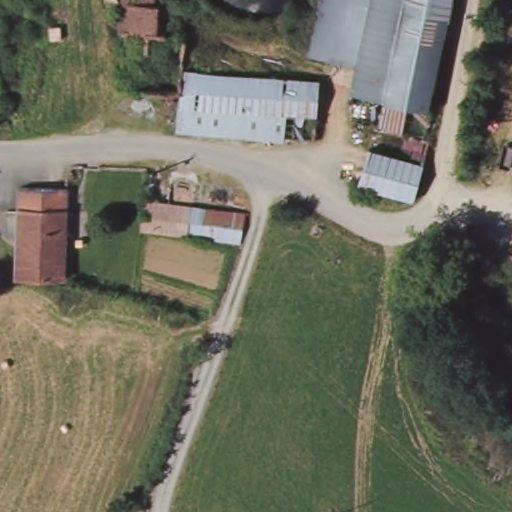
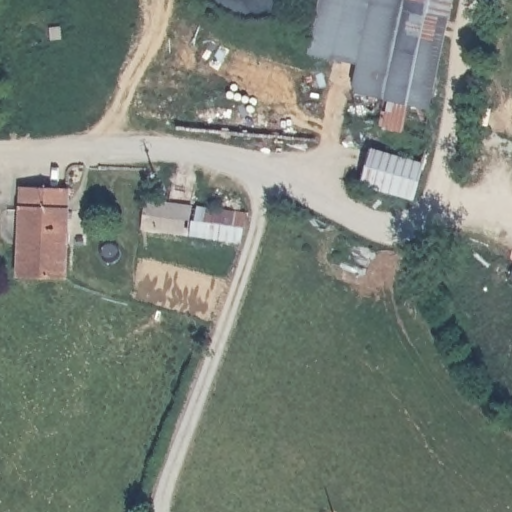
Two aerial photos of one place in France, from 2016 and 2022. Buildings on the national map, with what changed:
unchanged [(301,48),(312,0),(454,0),(450,52),(440,105),(438,110),(350,89),(355,62),(301,48)]
demolished [(186,67),(320,81),(313,139),(174,123),(176,104),(182,105),(185,88),(186,67)]
unchanged [(345,111),(350,89),(438,110),(435,126),(380,114),(378,120),(345,111)]
unchanged [(429,164),(416,203),(360,185),(370,146),(429,164)]
unchanged [(20,276),(29,187),(74,192),(66,282),(20,276)]
unchanged [(242,214),(240,222),(233,243),(230,243),(158,228),(154,227),(156,214),(159,199),(242,214)]

